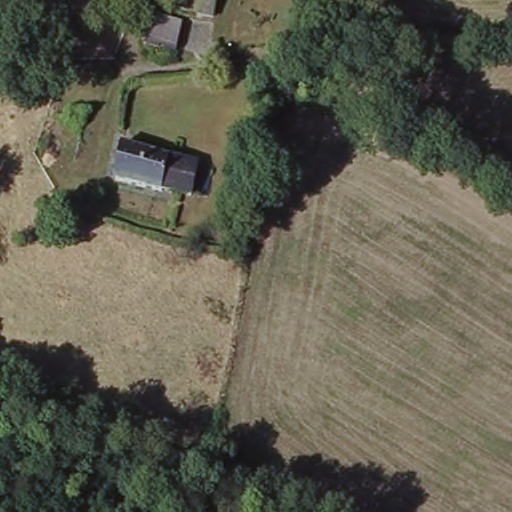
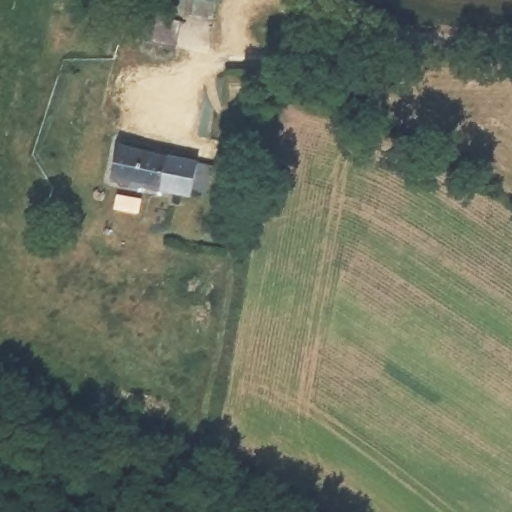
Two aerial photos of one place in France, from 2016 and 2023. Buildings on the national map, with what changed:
unchanged [(218,0),(216,8),(188,1),(188,0),(218,0)]
unchanged [(186,29),(179,55),(163,49),(161,55),(146,51),(156,20),(180,27),(186,29)]
unchanged [(207,165),(201,200),(124,182),(130,148),(207,165)]

